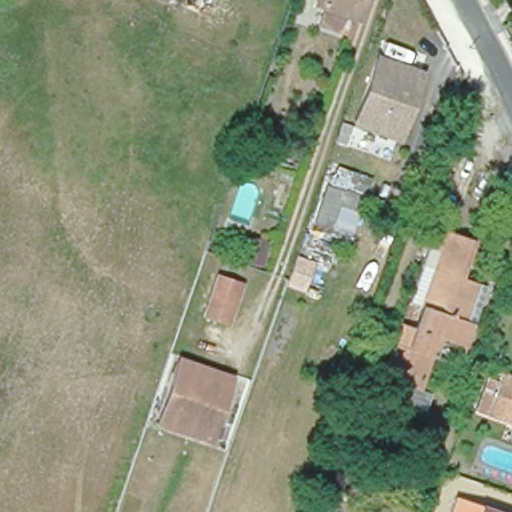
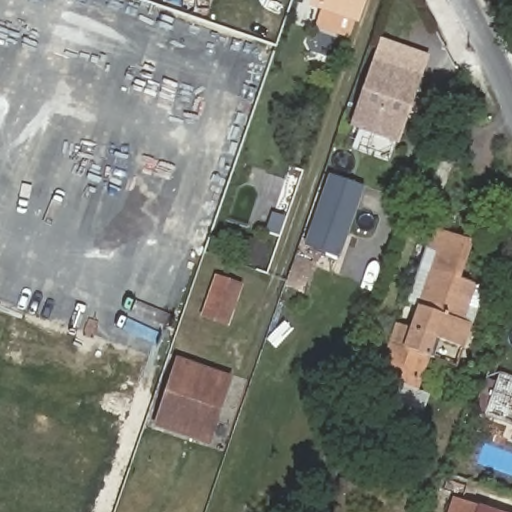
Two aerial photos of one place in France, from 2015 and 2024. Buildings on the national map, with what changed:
unchanged [(310,24),(316,6),(310,4),(312,0),(368,0),(360,21),(355,34),(354,39),(310,24)]
unchanged [(420,69),(397,137),(355,123),(376,55),(420,69)]
unchanged [(430,153),(460,165),(438,222),(407,211),(430,153)]
demolished [(348,215),(316,202),(331,166),(362,178),(348,215)]
new [(341,260),(305,247),(330,175),(365,187),(341,260)]
unchanged [(385,402),(364,396),(391,322),(418,251),(425,232),(467,247),(453,283),(465,288),(480,294),(467,325),(463,323),(454,347),(426,337),(407,385),(423,390),(415,412),(385,402)]
unchanged [(253,240),(267,244),(260,271),(247,266),(253,240)]
unchanged [(240,282),(229,318),(204,311),(215,275),(240,282)]
unchanged [(219,383),(197,444),(146,425),(167,364),(219,383)]
unchanged [(480,412),(495,370),(512,377),(512,424),(480,412)]
unchanged [(512,425),(512,440),(507,438),(512,425)]
unchanged [(450,495),(504,512),(445,512),(450,495)]

